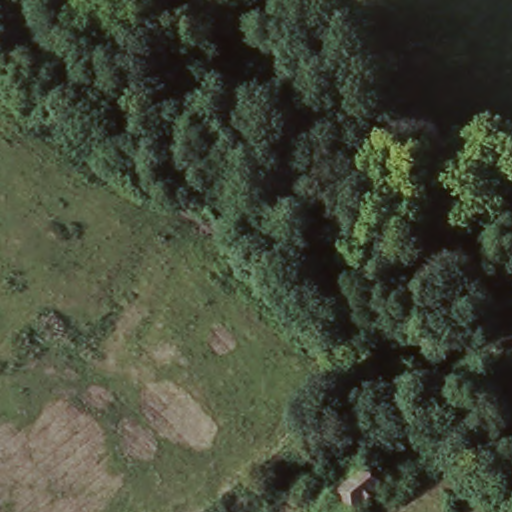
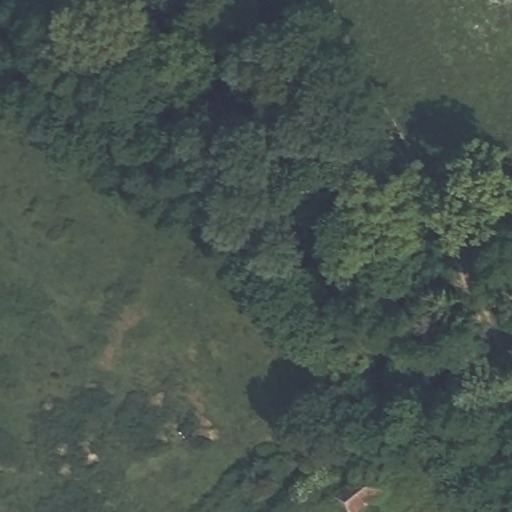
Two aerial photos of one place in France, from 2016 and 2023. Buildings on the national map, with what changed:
unchanged [(355,512),(346,512),(336,499),(371,472),(384,489),(355,512)]

